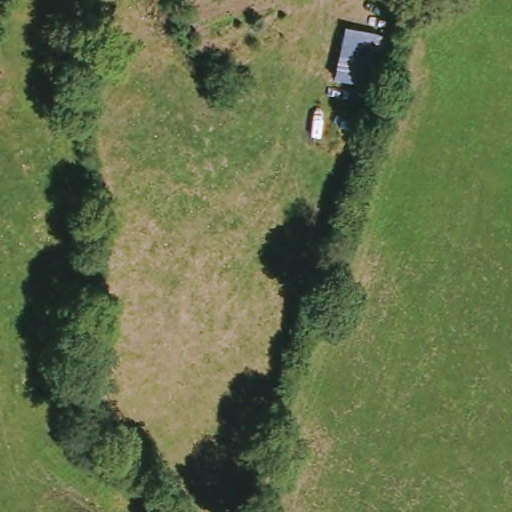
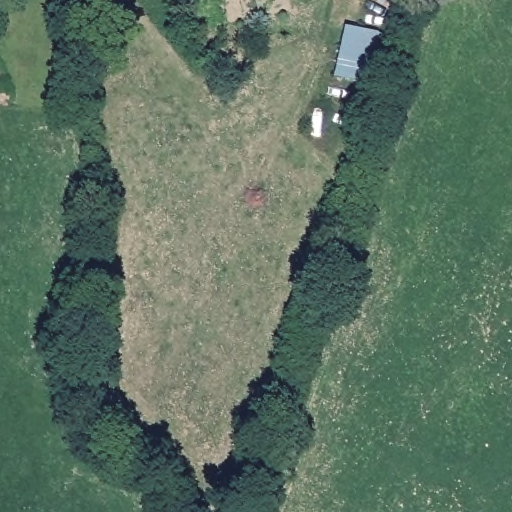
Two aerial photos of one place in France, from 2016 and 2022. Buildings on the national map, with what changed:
unchanged [(335,77),(349,28),(379,36),(365,86),(335,77)]

